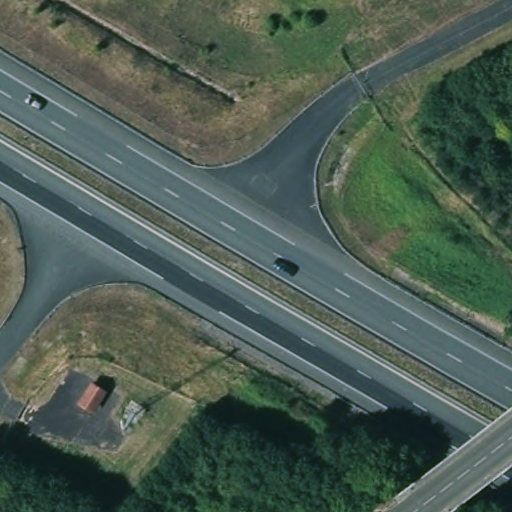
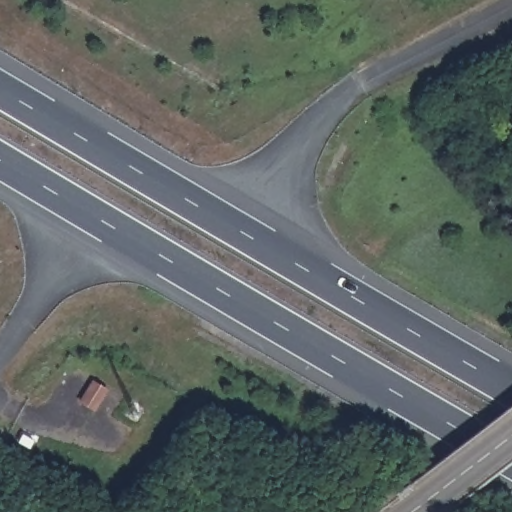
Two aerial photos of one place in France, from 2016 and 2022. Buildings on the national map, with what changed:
unchanged [(113,387),(99,413),(82,403),(93,377),(113,387)]

